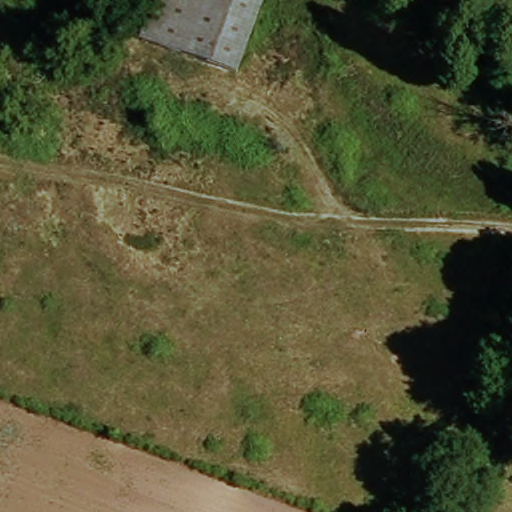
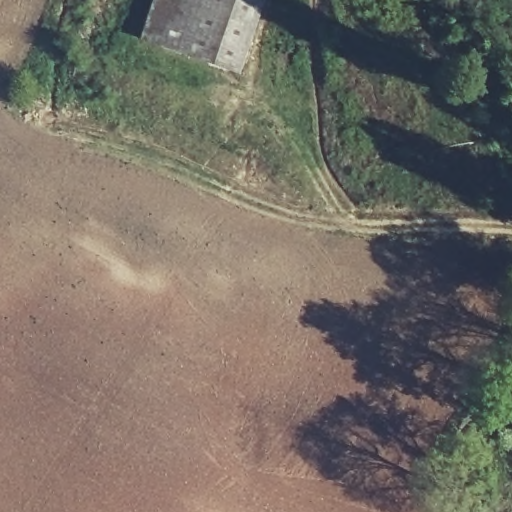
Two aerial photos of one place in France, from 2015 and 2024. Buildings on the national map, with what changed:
unchanged [(250,70),(135,39),(145,0),(268,0),(250,70)]

